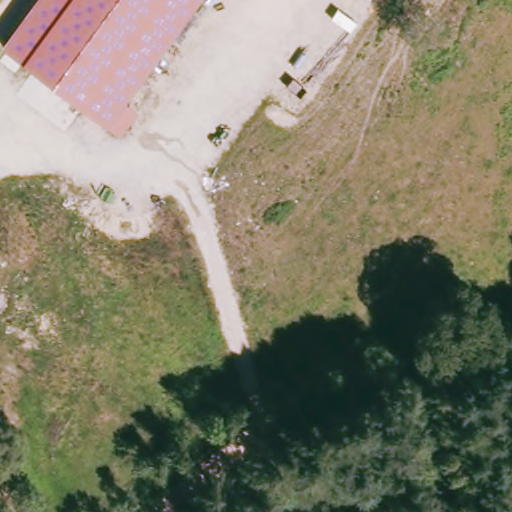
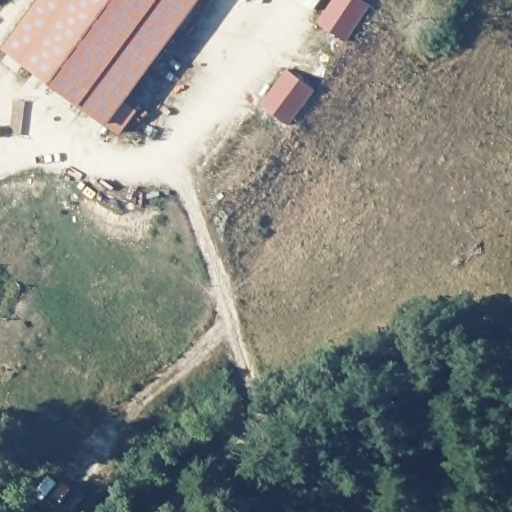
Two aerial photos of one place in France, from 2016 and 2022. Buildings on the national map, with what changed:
unchanged [(127,93),(138,102),(117,132),(1,46),(34,0),(195,0),(127,93)]
new [(316,22),(331,0),(359,0),(369,6),(346,42),(316,22)]
new [(287,71),(314,92),(289,126),(261,105),(287,71)]

